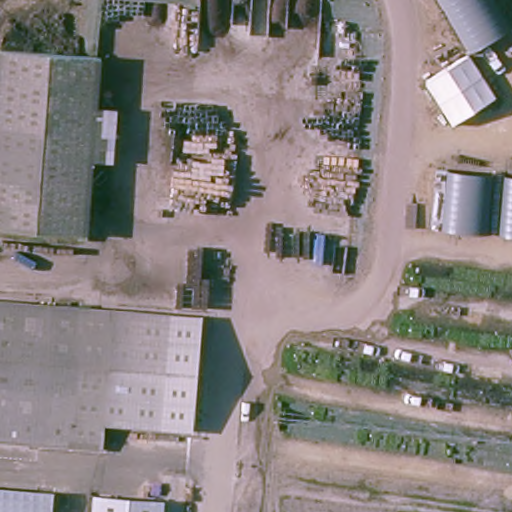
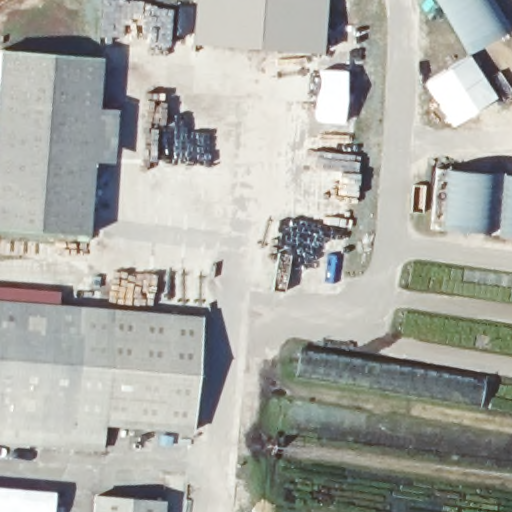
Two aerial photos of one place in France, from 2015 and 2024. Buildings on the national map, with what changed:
new [(194,6),(195,0),(330,0),(327,54),(191,43),(192,28),(187,27),(187,32),(175,31),(178,5),(194,6)]
unchanged [(471,54),(441,0),(495,0),(510,29),(471,54)]
unchanged [(6,49),(104,52),(100,229),(2,225),(6,49)]
new [(426,83),(469,55),(496,96),(453,124),(426,83)]
new [(322,70),(347,71),(343,123),(317,121),(322,70)]
unchanged [(512,236),(431,228),(437,169),(512,176),(512,236)]
unchanged [(107,304),(101,443),(0,438),(0,299),(107,304)]
unchanged [(107,304),(197,308),(192,422),(131,419),(130,445),(101,443),(107,304)]
unchanged [(50,488),(48,512),(0,512),(0,486),(50,488)]
unchanged [(165,500),(164,512),(94,512),(95,495),(165,500)]

